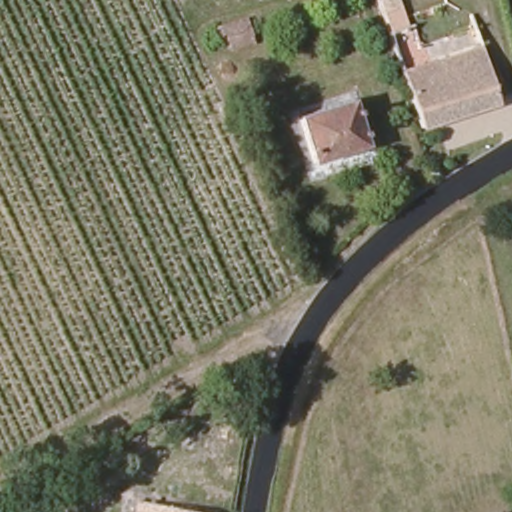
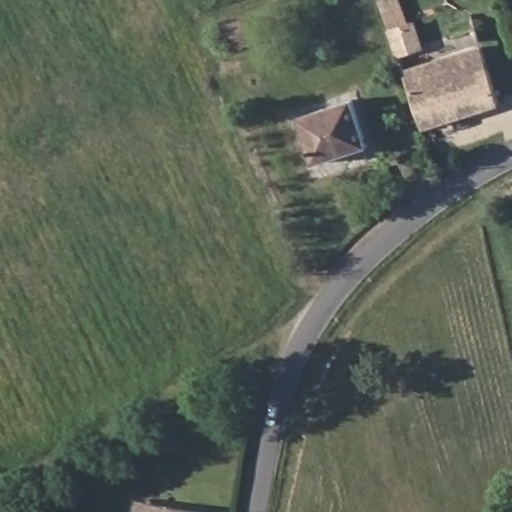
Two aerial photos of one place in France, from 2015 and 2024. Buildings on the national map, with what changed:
unchanged [(390,35),(379,0),(394,0),(405,29),(390,35)]
unchanged [(257,21),(266,45),(244,51),(232,30),(257,21)]
unchanged [(483,45),(502,100),(424,125),(404,70),(483,45)]
unchanged [(356,102),(371,147),(320,162),(302,117),(356,102)]
unchanged [(89,485),(66,496),(59,483),(82,473),(89,485)]
unchanged [(139,502),(193,512),(136,512),(139,502)]

